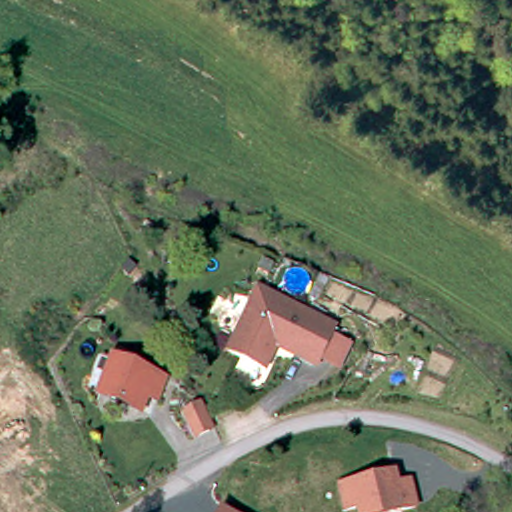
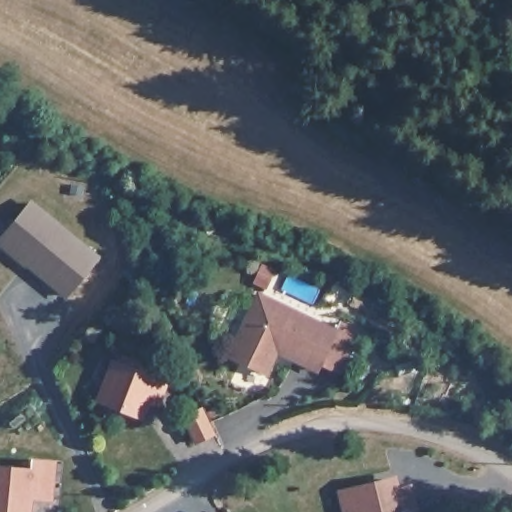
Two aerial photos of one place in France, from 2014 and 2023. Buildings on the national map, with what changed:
new [(65,298),(0,244),(0,239),(32,199),(100,254),(65,298)]
unchanged [(343,329),(323,372),(277,354),(266,377),(227,360),(257,293),(343,329)]
unchanged [(105,395),(119,360),(169,380),(162,397),(150,393),(143,410),(105,395)]
new [(61,460),(59,505),(34,505),(32,512),(0,512),(0,466),(28,472),(30,457),(61,460)]
unchanged [(397,474),(399,485),(411,482),(417,511),(412,512),(342,512),(337,488),(397,474)]

